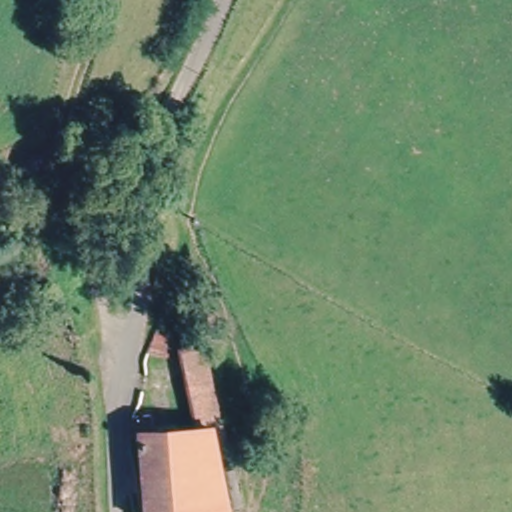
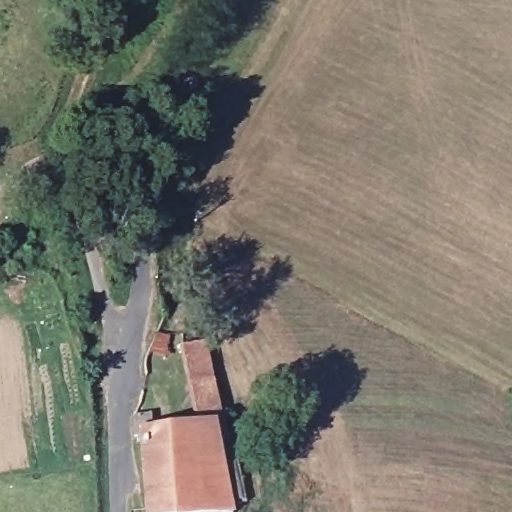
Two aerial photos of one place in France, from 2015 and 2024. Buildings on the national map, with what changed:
unchanged [(199,405),(184,347),(200,342),(216,400),(199,405)]
unchanged [(197,425),(199,405),(216,400),(232,442),(220,446),(226,462),(239,458),(249,500),(229,503),(230,512),(148,512),(147,511),(137,436),(128,438),(125,413),(134,411),(147,408),(150,433),(197,425)]

